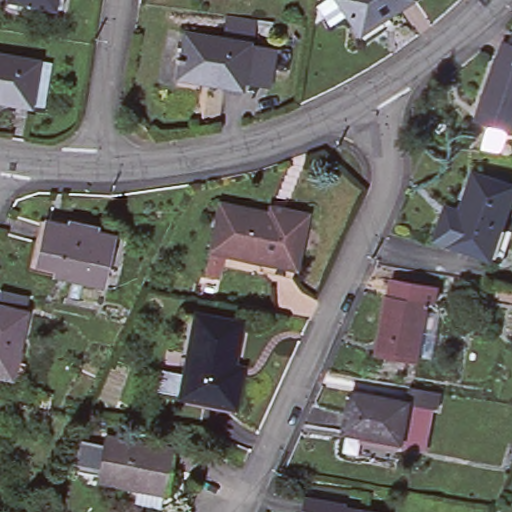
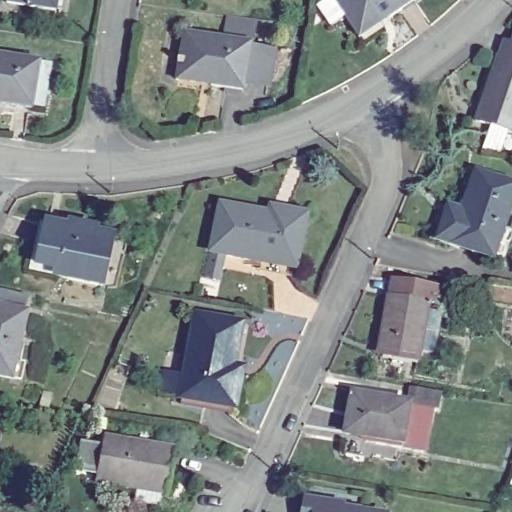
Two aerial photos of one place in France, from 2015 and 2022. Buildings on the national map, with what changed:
unchanged [(7,0),(56,0),(55,10),(7,1),(7,0)]
unchanged [(323,0),(412,0),(357,35),(345,15),(330,24),(317,4),(323,0)]
unchanged [(257,85),(233,80),(232,90),(165,77),(174,30),(240,42),(239,45),(263,50),(257,85)]
unchanged [(509,120),(474,109),(496,42),(504,45),(509,30),(512,31),(512,111),(509,120)]
unchanged [(35,106),(0,99),(0,52),(43,60),(35,106)]
unchanged [(474,172),(512,186),(512,194),(491,257),(434,239),(442,215),(458,220),(474,172)]
unchanged [(305,214),(292,267),(211,249),(221,204),(279,217),(281,208),(305,214)]
unchanged [(90,232),(107,236),(97,283),(51,273),(53,266),(32,261),(41,221),(72,227),(72,223),(90,227),(90,232)]
unchanged [(377,352),(379,346),(373,345),(383,290),(387,291),(390,275),(431,282),(428,297),(422,296),(412,352),(412,358),(377,352)]
unchanged [(0,306),(25,311),(11,378),(0,376),(0,306)]
unchanged [(236,377),(230,405),(182,395),(198,317),(239,325),(227,376),(236,377)]
unchanged [(346,392),(405,403),(397,444),(339,433),(346,392)]
unchanged [(107,433),(176,448),(166,492),(97,477),(107,433)]
unchanged [(299,497),(337,506),(337,503),(377,512),(296,512),(299,497)]

